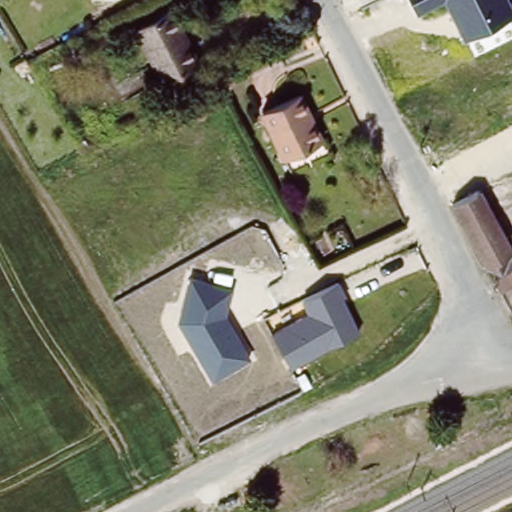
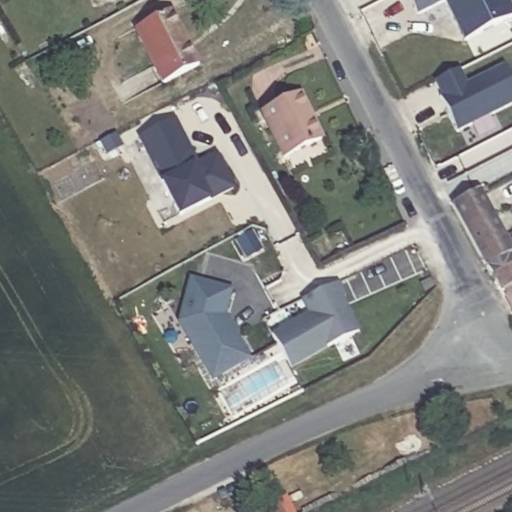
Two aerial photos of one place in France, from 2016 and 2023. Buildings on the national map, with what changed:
unchanged [(466,42),(445,3),(417,15),(410,0),(508,0),(512,7),(512,18),(466,42)]
unchanged [(167,14),(194,67),(158,86),(130,33),(167,14)]
new [(459,68),(466,83),(504,65),(512,82),(512,105),(457,131),(439,96),(442,95),(434,80),(459,68)]
unchanged [(298,96),(320,141),(282,161),(259,116),(298,96)]
new [(176,119),(198,162),(218,152),(234,189),(211,201),(179,217),(161,180),(138,136),(176,119)]
unchanged [(447,210),(472,196),(474,194),(476,196),(481,206),(502,246),(510,242),(512,246),(512,285),(493,296),(447,210)]
unchanged [(233,289),(226,317),(251,359),(213,381),(178,323),(190,279),(233,289)]
unchanged [(339,283),(346,296),(344,298),(361,332),(292,368),(273,335),(308,315),(302,300),(339,283)]

